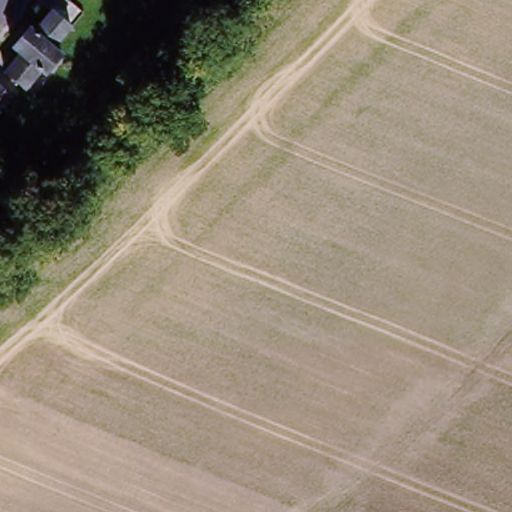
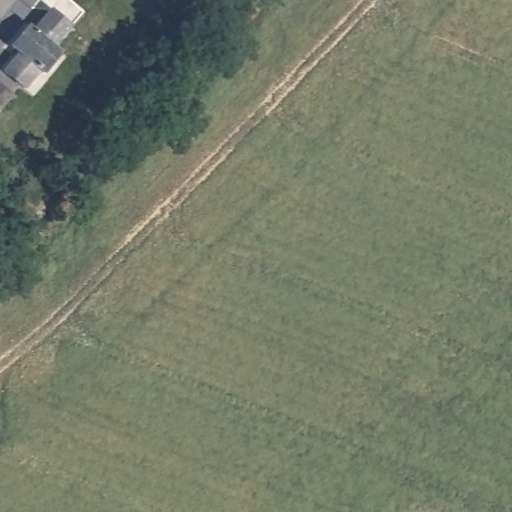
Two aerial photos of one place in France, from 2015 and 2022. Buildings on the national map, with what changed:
unchanged [(25,31),(34,40),(56,17),(74,34),(58,52),(67,59),(48,81),(37,72),(20,93),(0,75),(13,61),(4,54),(25,31)]
unchanged [(12,102),(0,116),(0,91),(12,102)]

